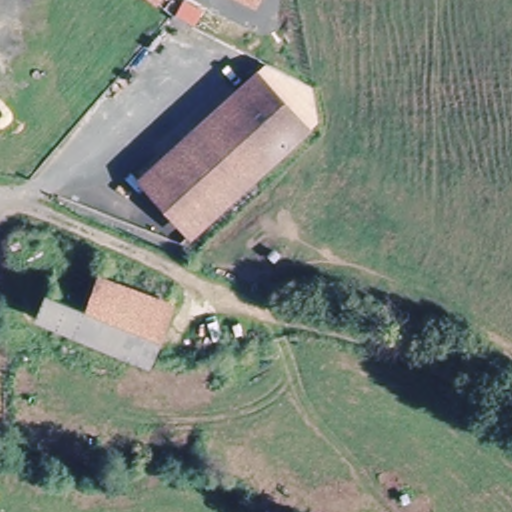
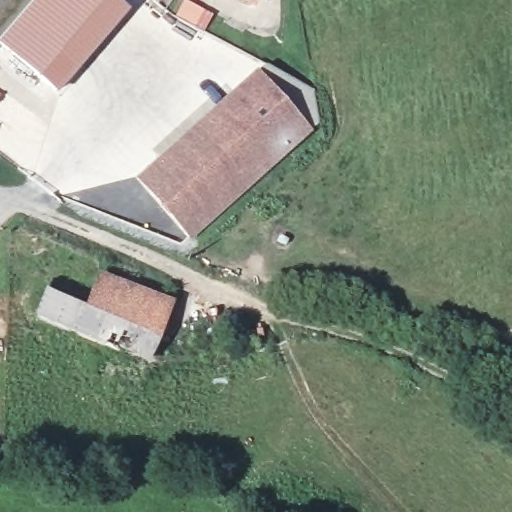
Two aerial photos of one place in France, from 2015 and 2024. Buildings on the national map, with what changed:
new [(59,94),(0,45),(0,40),(36,0),(117,0),(130,11),(59,94)]
unchanged [(243,0),(250,0),(249,3),(243,0)]
unchanged [(303,131),(192,234),(142,179),(254,78),(303,131)]
unchanged [(142,372),(35,328),(47,304),(82,319),(97,288),(165,317),(142,372)]

